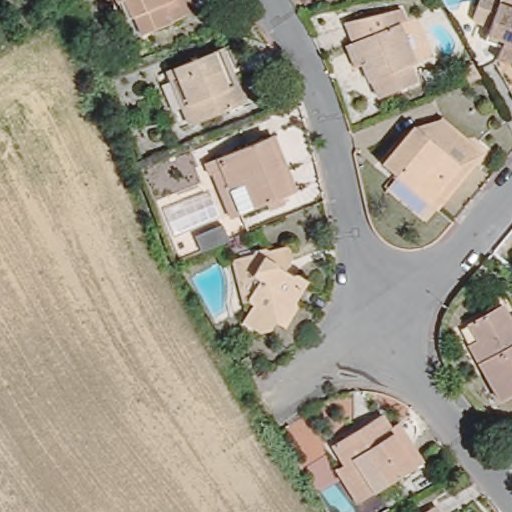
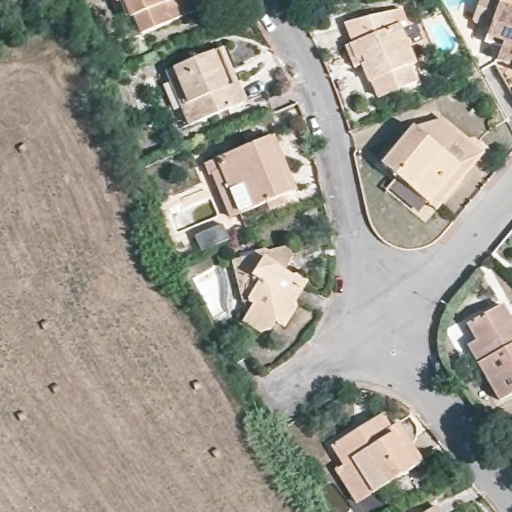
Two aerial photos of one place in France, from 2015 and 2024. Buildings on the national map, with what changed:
unchanged [(117,5),(115,0),(186,0),(191,14),(183,19),(170,24),(171,26),(149,35),(142,37),(133,20),(125,23),(117,5)]
unchanged [(509,54),(506,62),(496,58),(501,46),(484,39),(489,26),(471,19),(478,0),(512,0),(512,55),(509,54)]
unchanged [(349,56),(345,46),(351,43),(344,25),(392,12),(397,24),(399,24),(415,63),(409,65),(415,80),(379,94),(373,80),(369,81),(363,65),(354,67),(349,56)]
unchanged [(164,70),(211,50),(217,47),(224,65),(231,81),(238,100),(186,122),(178,102),(168,80),(164,70)]
unchanged [(457,163),(414,126),(442,117),(481,152),(432,207),(424,201),(457,163)]
unchanged [(381,164),(414,126),(457,163),(424,201),(381,164)]
unchanged [(246,217),(237,221),(213,166),(223,162),(276,140),(299,195),(284,201),(274,205),(246,217)]
unchanged [(288,328),(281,324),(279,322),(276,330),(264,331),(248,320),(252,315),(241,279),(236,261),(256,253),(258,249),(268,247),(271,251),(291,245),(294,257),(286,270),(292,275),(299,273),(311,284),(299,304),(300,309),(296,315),(293,320),(288,328)]
unchanged [(497,400),(467,345),(474,341),(466,324),(473,321),(501,307),(509,322),(512,320),(512,391),(497,400)]
unchanged [(337,470),(344,465),(332,446),(353,432),(371,420),(381,415),(389,427),(396,423),(422,462),(373,493),(358,503),(337,470)]
unchanged [(434,511),(435,512),(433,512),(434,511)]

